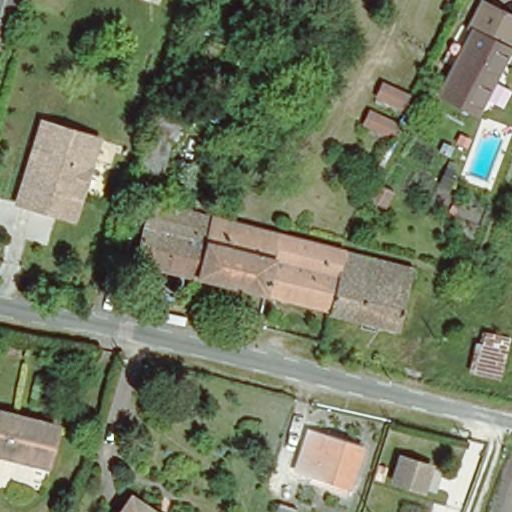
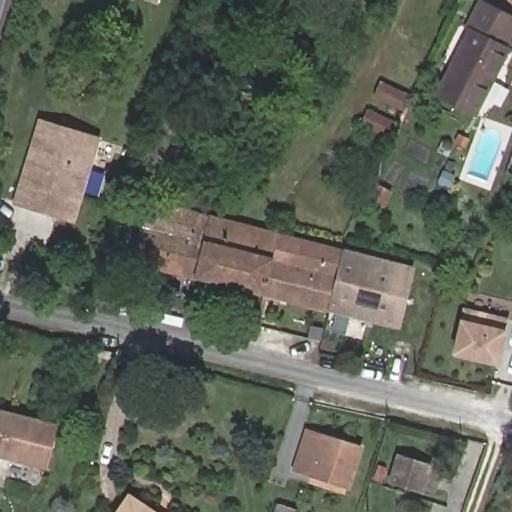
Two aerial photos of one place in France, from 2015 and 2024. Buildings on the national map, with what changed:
unchanged [(470,35),(486,5),(512,19),(512,32),(502,51),(506,53),(474,117),(438,100),(470,35)]
unchanged [(403,91),(394,111),(372,102),(381,82),(403,91)]
unchanged [(232,106),(236,88),(254,92),(250,110),(232,106)]
unchanged [(364,127),(369,110),(391,117),(386,134),(364,127)]
unchanged [(54,214),(32,206),(14,201),(16,194),(40,120),(96,139),(74,210),(71,219),(54,214)]
unchanged [(151,131),(169,136),(159,171),(141,166),(151,131)]
unchanged [(360,199),(365,180),(386,186),(380,205),(360,199)]
unchanged [(196,276),(132,261),(150,201),(211,216),(196,276)]
unchanged [(278,232),(265,292),(196,276),(211,216),(278,232)]
unchanged [(316,241),(302,301),(265,292),(278,232),(316,241)]
unchanged [(343,249),(330,308),(302,301),(316,241),(339,247),(343,249)]
unchanged [(343,249),(412,266),(397,324),(330,308),(343,249)]
new [(507,330),(499,365),(452,354),(460,320),(463,307),(510,317),(507,330)]
demolished [(485,331),(507,336),(499,375),(477,371),(485,331)]
unchanged [(45,467),(0,458),(0,417),(54,430),(45,467)]
unchanged [(307,482),(310,473),(294,468),(306,431),(360,447),(347,485),(345,493),(307,482)]
unchanged [(421,490),(392,480),(400,456),(429,465),(421,490)]
unchanged [(154,512),(118,512),(130,495),(154,512)]
unchanged [(277,510),(282,512),(276,512),(277,510)]

